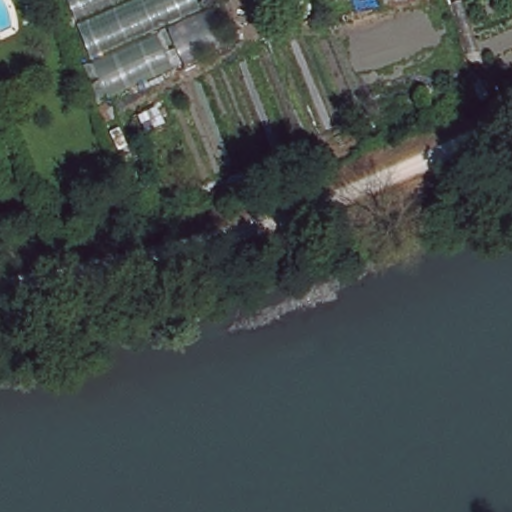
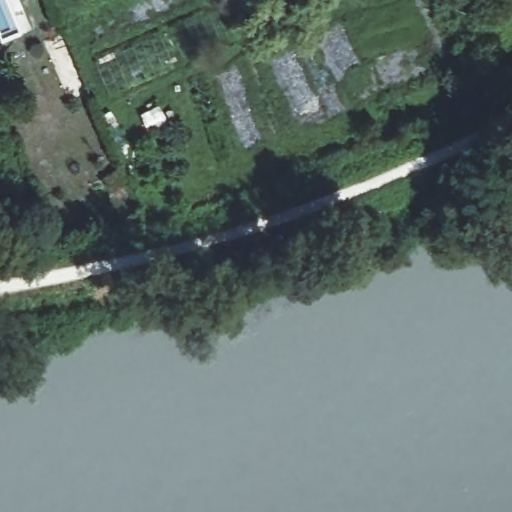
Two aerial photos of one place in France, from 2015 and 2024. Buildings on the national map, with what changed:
new [(220,49),(109,97),(68,0),(199,0),(220,49)]
unchanged [(130,189),(117,196),(106,176),(120,170),(130,189)]

